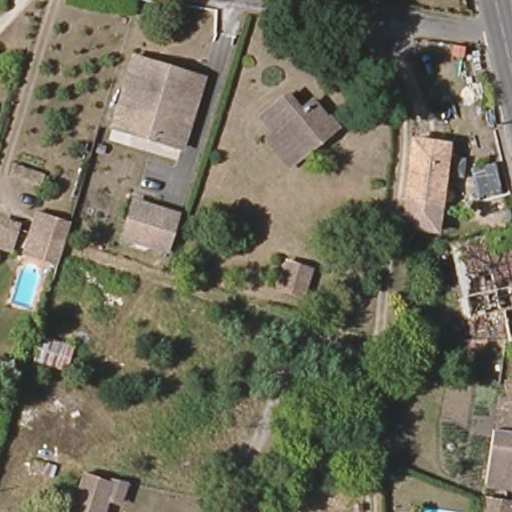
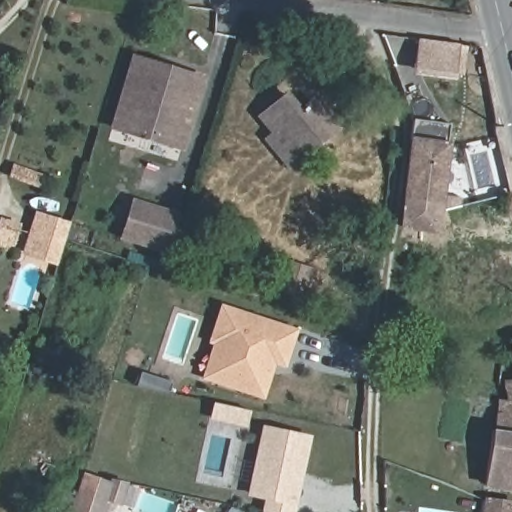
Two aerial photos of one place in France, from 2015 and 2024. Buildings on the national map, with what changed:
new [(469,45),(465,78),(457,78),(413,72),(418,37),(460,43),(469,45)]
unchanged [(149,139),(111,127),(132,57),(201,78),(186,126),(180,147),(149,139)]
unchanged [(327,122),(333,130),(328,134),(301,157),(280,130),(273,135),(258,118),(285,95),(300,112),(311,103),(327,122)]
unchanged [(401,237),(404,208),(410,160),(411,140),(422,141),(421,151),(443,153),(437,210),(436,219),(433,239),(401,237)]
unchanged [(172,227),(165,250),(119,237),(130,202),(175,215),(172,227)]
unchanged [(55,260),(26,252),(39,209),(67,217),(55,260)]
unchanged [(12,254),(0,250),(0,217),(21,222),(12,254)]
unchanged [(453,251),(506,237),(512,236),(512,289),(465,302),(452,302),(448,281),(460,278),(453,251)]
unchanged [(301,270),(293,295),(267,286),(275,262),(301,270)]
demolished [(505,346),(502,336),(509,334),(503,313),(471,322),(465,302),(512,289),(512,344),(510,345),(505,346)]
demolished [(17,340),(0,335),(0,326),(7,301),(26,306),(17,340)]
new [(276,363),(265,398),(200,378),(212,344),(209,342),(220,304),(298,328),(286,366),(276,363)]
unchanged [(397,311),(397,307),(411,308),(410,318),(387,316),(388,309),(397,311)]
unchanged [(44,339),(74,350),(65,372),(36,365),(44,339)]
unchanged [(503,388),(510,345),(512,344),(512,389),(511,387),(503,388)]
unchanged [(500,406),(512,407),(512,435),(497,433),(500,406)]
new [(264,500),(247,497),(262,425),(311,435),(296,512),(261,512),(264,500)]
unchanged [(507,508),(512,509),(512,512),(486,512),(487,504),(497,433),(512,435),(512,473),(510,492),(507,508)]
unchanged [(512,473),(512,492),(510,492),(512,473)]
unchanged [(121,508),(107,503),(105,512),(73,512),(85,477),(126,486),(121,508)]
unchanged [(352,510),(358,510),(358,512),(352,512),(352,510)]

